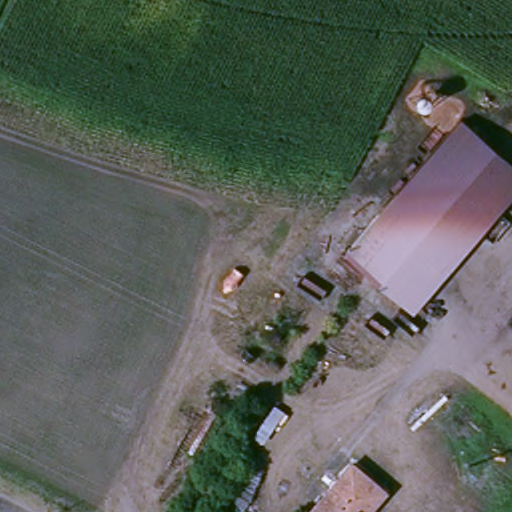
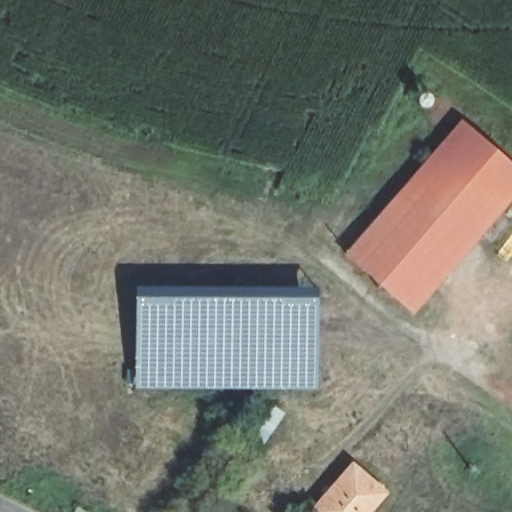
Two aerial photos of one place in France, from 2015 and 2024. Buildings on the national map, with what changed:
unchanged [(512,171),(512,201),(408,311),(343,248),(465,122),(512,171)]
new [(135,386),(136,286),(317,286),(317,387),(135,386)]
unchanged [(368,512),(309,512),(305,509),(351,464),(384,494),(368,512)]

